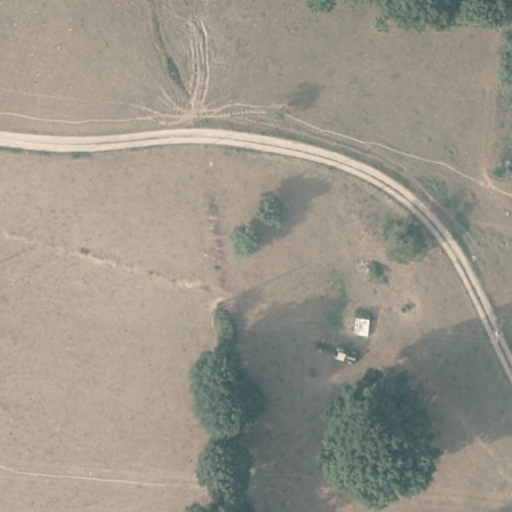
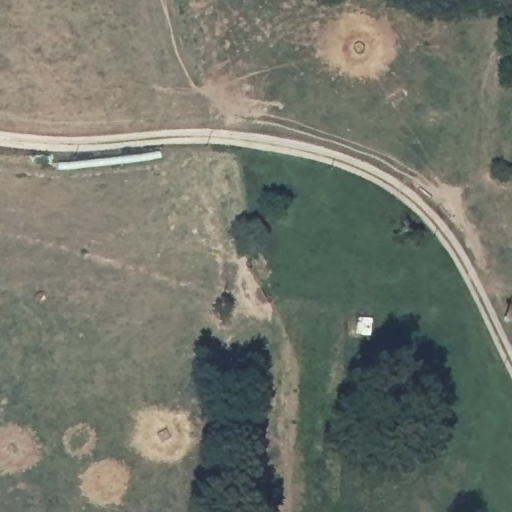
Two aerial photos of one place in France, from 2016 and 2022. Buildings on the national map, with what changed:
[]

